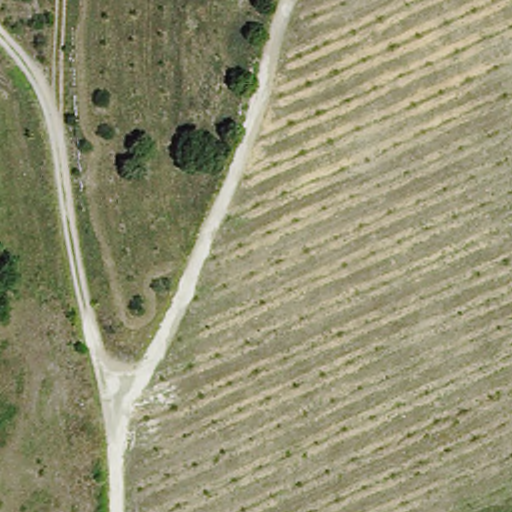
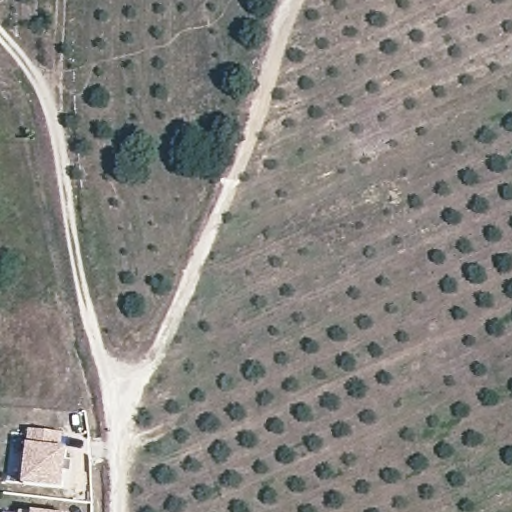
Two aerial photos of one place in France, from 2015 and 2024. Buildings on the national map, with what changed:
new [(28,429),(64,433),(62,448),(68,448),(63,490),(22,485),(28,429)]
new [(19,510),(42,512),(19,512),(19,510)]

